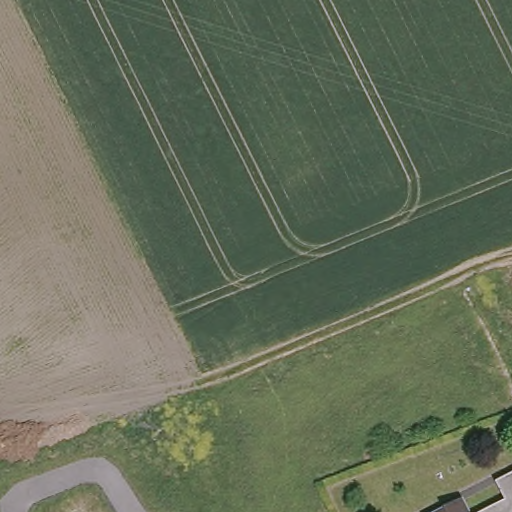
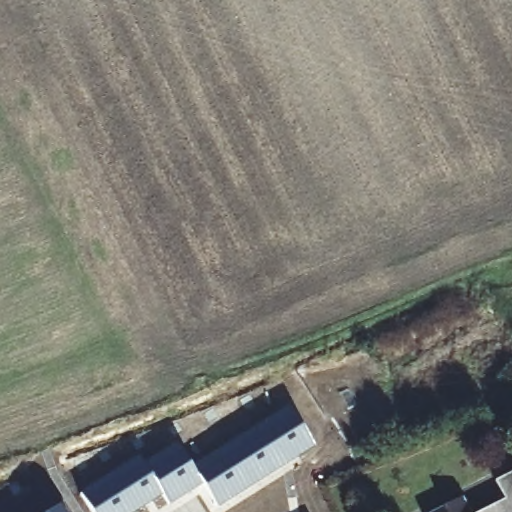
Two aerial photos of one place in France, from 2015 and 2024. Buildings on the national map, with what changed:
new [(162,496),(136,512),(91,512),(79,494),(137,457),(142,465),(175,444),(190,467),(287,406),(312,446),(215,507),(202,484),(168,505),(162,496)]
unchanged [(495,479),(512,471),(512,512),(478,512),(503,499),(495,479)]
unchanged [(468,512),(432,512),(460,497),(468,512)]
new [(62,512),(51,512),(58,507),(62,512)]

